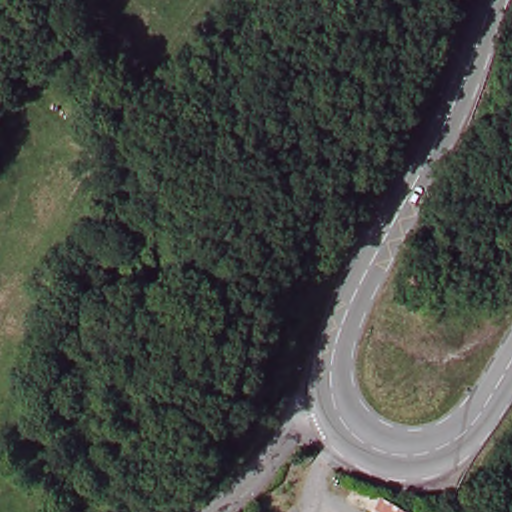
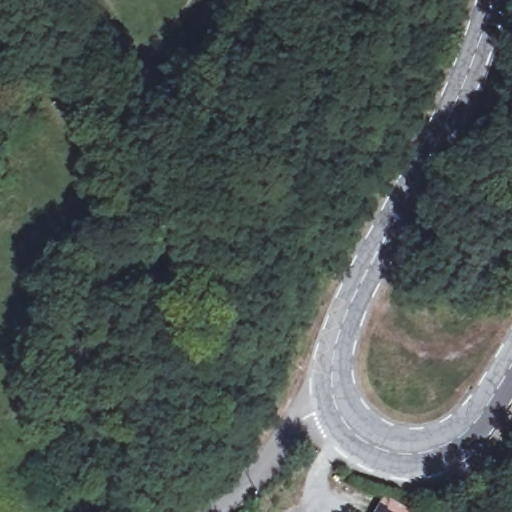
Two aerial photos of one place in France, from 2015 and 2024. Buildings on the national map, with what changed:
unchanged [(58,448),(37,429),(45,420),(66,438),(58,448)]

